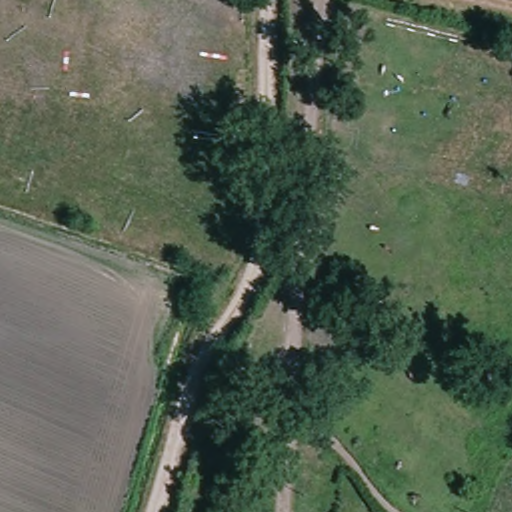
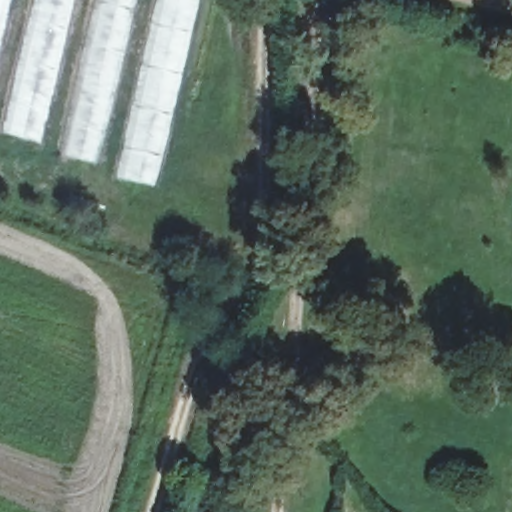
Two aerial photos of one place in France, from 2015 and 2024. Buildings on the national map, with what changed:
new [(0,35),(0,0),(8,0),(0,35)]
new [(39,142),(0,133),(32,0),(73,0),(39,142)]
new [(58,154),(94,0),(135,0),(96,164),(58,154)]
new [(155,185),(114,177),(154,0),(197,0),(155,185)]

